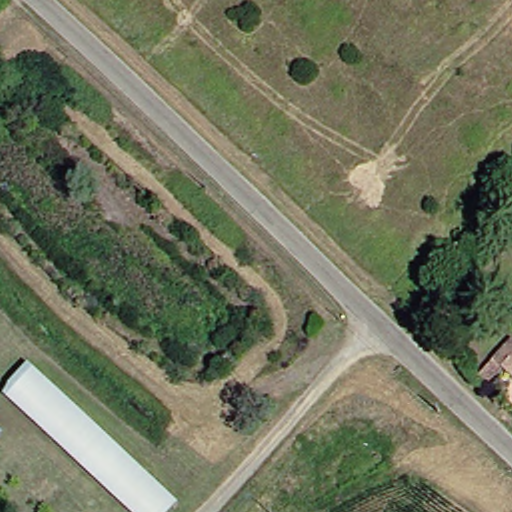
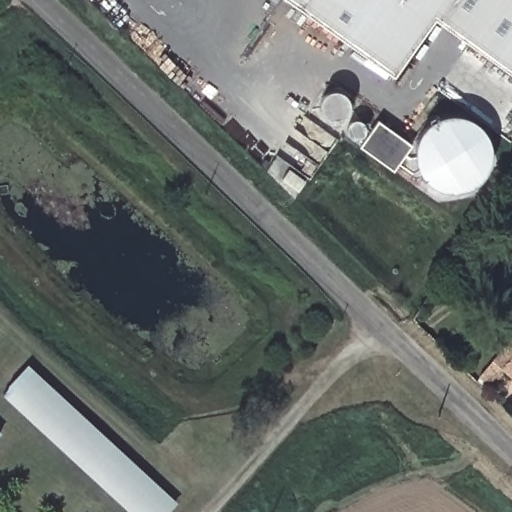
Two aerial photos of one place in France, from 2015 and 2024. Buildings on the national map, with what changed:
new [(393,78),(284,0),(448,0),(393,78)]
new [(448,0),(512,0),(512,72),(436,17),(448,0)]
new [(379,120),(411,145),(412,146),(394,169),(362,145),(379,120)]
unchanged [(502,349),(510,339),(512,341),(512,376),(493,359),(502,349)]
unchanged [(171,501),(161,512),(125,512),(0,395),(0,387),(24,362),(171,501)]

